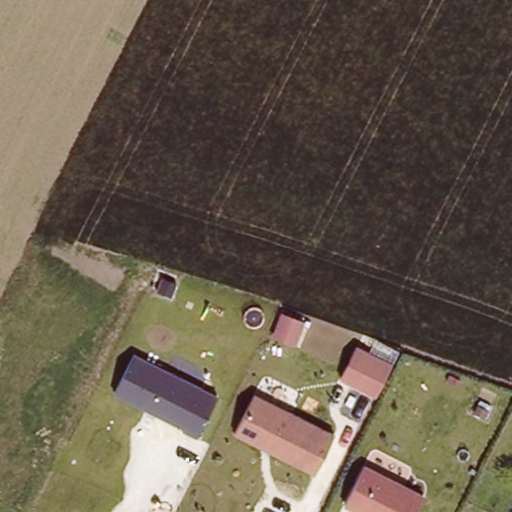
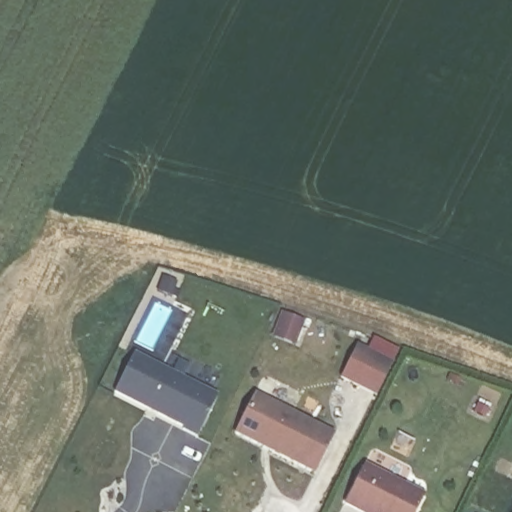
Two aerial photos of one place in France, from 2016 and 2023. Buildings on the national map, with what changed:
unchanged [(340,376),(357,345),(392,364),(376,395),(340,376)]
unchanged [(114,391),(136,351),(220,393),(198,434),(114,391)]
unchanged [(255,391),(336,433),(315,474),(234,431),(255,391)]
unchanged [(365,461),(425,493),(415,512),(365,512),(343,501),(365,461)]

